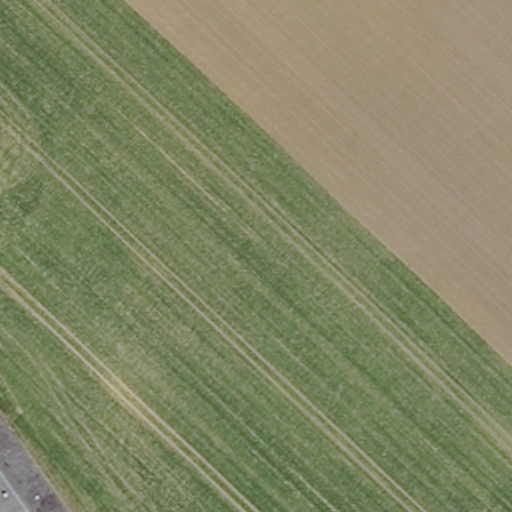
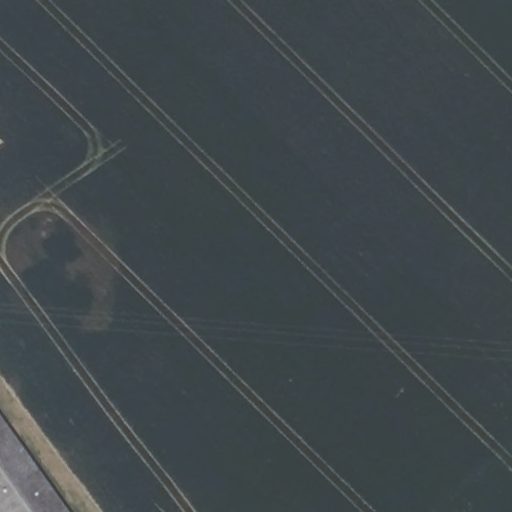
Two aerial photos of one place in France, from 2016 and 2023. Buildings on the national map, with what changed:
unchanged [(0,512),(0,422),(65,512),(0,512)]

